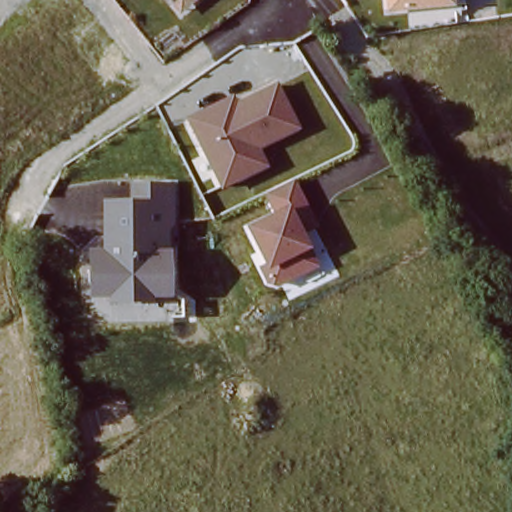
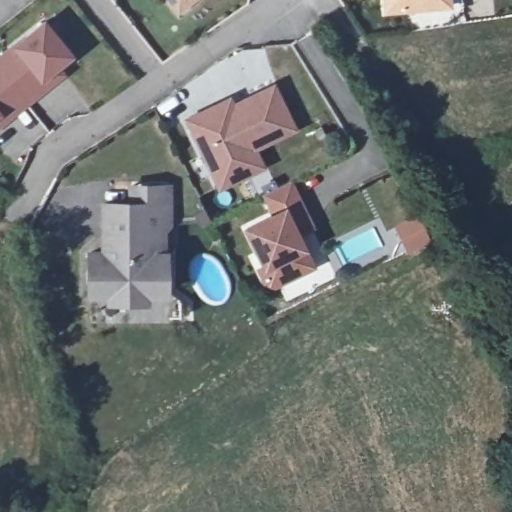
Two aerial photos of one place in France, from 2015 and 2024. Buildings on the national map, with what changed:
unchanged [(183,10),(179,6),(174,0),(195,0),(183,10)]
unchanged [(453,8),(435,10),(390,14),(389,0),(452,0),(453,8)]
new [(51,73),(57,79),(0,125),(0,60),(39,29),(65,61),(51,73)]
unchanged [(260,149),(268,167),(221,192),(187,119),(235,96),(238,103),(279,82),(301,131),(260,149)]
unchanged [(302,236),(319,270),(278,290),(268,285),(262,265),(245,228),(276,211),(264,193),(296,179),(318,227),(302,236)]
unchanged [(131,196),(146,196),(169,196),(169,233),(152,250),(166,264),(167,302),(90,303),(90,290),(88,290),(88,280),(90,280),(90,263),(104,263),(104,213),(131,213),(131,196)]

